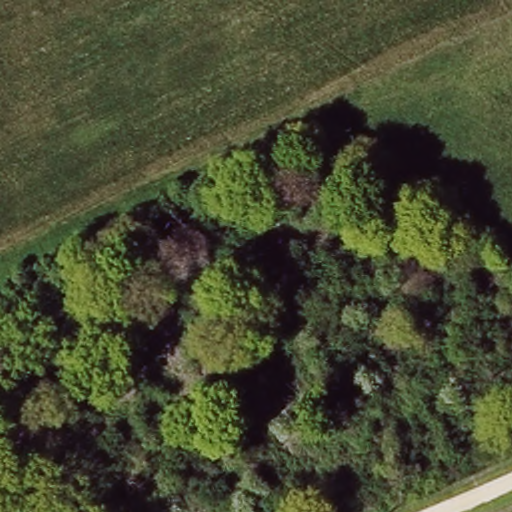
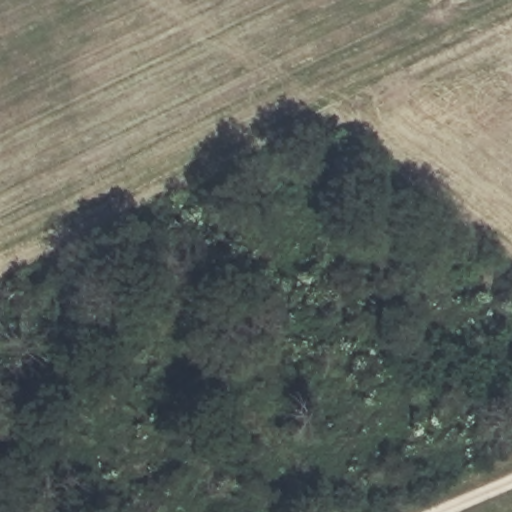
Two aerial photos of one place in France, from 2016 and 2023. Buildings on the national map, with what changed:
[]

